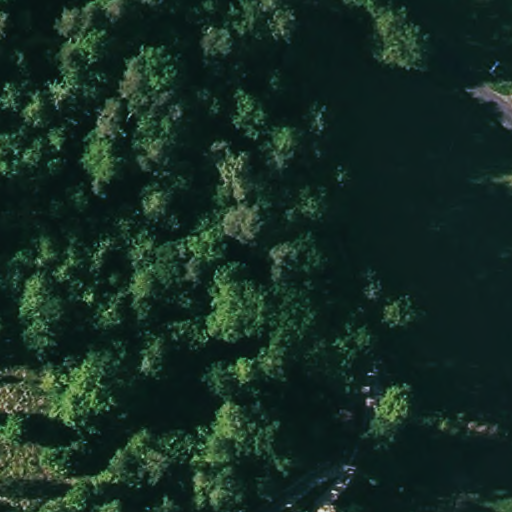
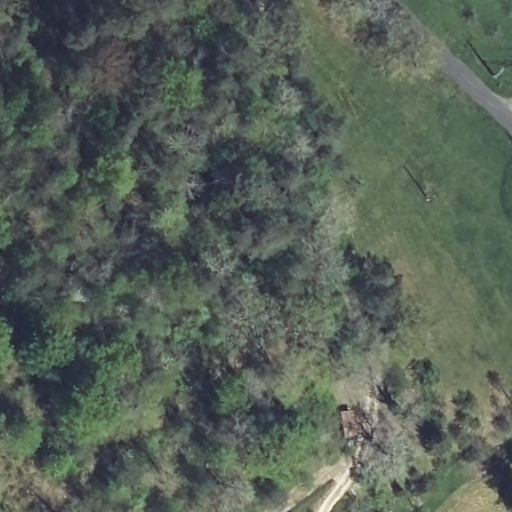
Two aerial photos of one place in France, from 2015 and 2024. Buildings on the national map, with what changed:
[]

